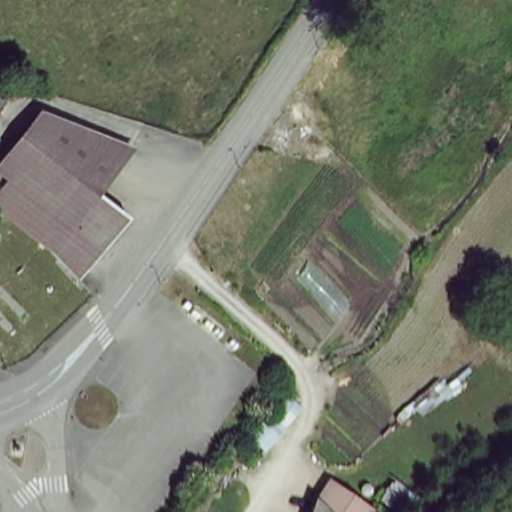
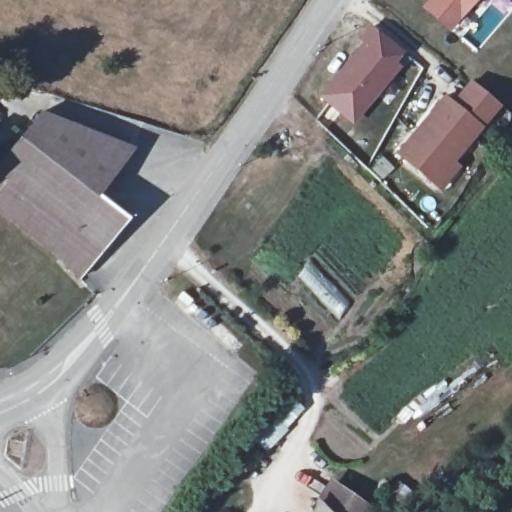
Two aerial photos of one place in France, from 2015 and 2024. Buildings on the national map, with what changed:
new [(461,12),(446,0),(471,0),(461,12)]
new [(353,125),(319,95),(362,42),(359,39),(372,25),(405,52),(396,64),(401,67),(353,125)]
new [(444,95),(453,100),(470,80),(500,105),(435,185),(396,152),(444,95)]
unchanged [(38,119),(106,138),(80,175),(99,190),(59,245),(56,241),(7,186),(6,184),(0,178),(0,170),(38,119)]
unchanged [(132,145),(99,190),(80,175),(106,138),(132,145)]
unchanged [(57,249),(0,216),(0,195),(7,186),(56,241),(59,245),(85,274),(57,249)]
unchanged [(129,213),(85,274),(59,245),(99,190),(129,213)]
unchanged [(367,508),(365,512),(339,512),(325,497),(332,473),(367,508)]
unchanged [(339,512),(320,512),(325,497),(339,512)]

